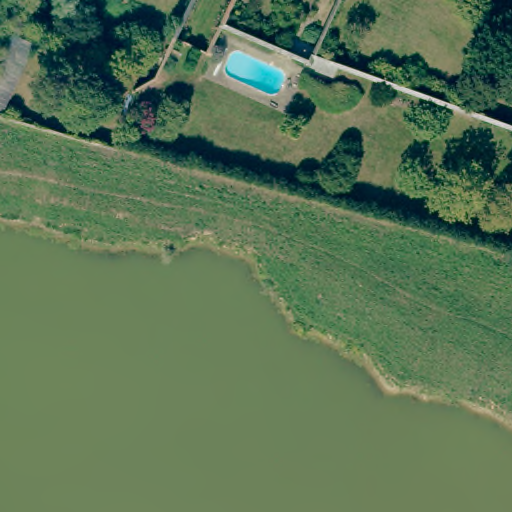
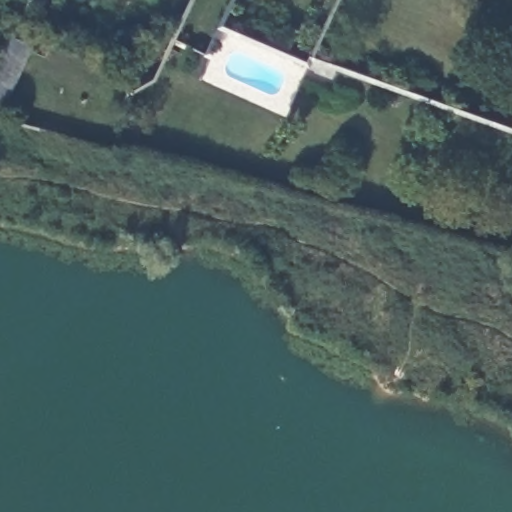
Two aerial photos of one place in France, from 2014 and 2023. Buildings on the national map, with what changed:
unchanged [(5,52),(12,36),(34,46),(14,87),(1,115),(0,114),(0,62),(5,52)]

